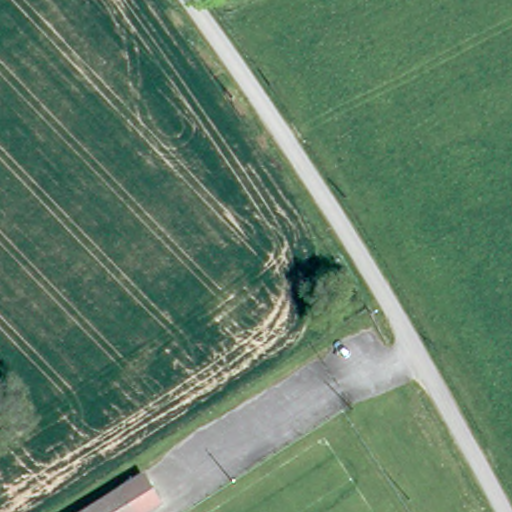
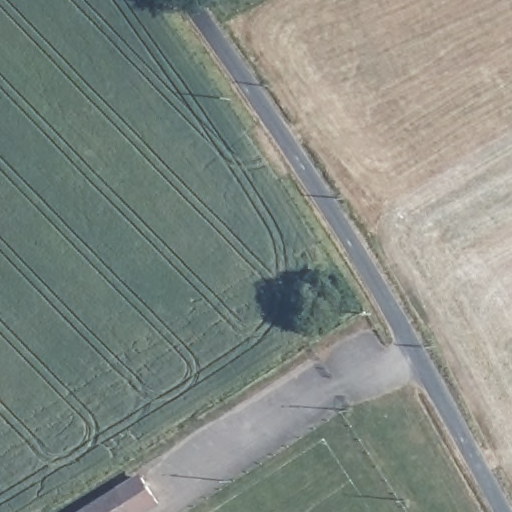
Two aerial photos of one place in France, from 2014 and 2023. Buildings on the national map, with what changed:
unchanged [(144,475),(161,500),(142,512),(86,512),(144,475)]

